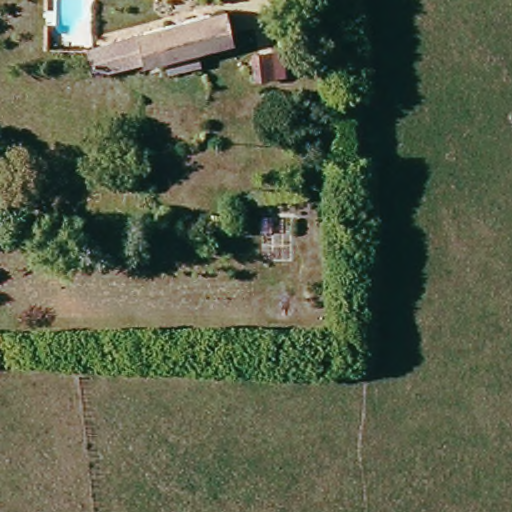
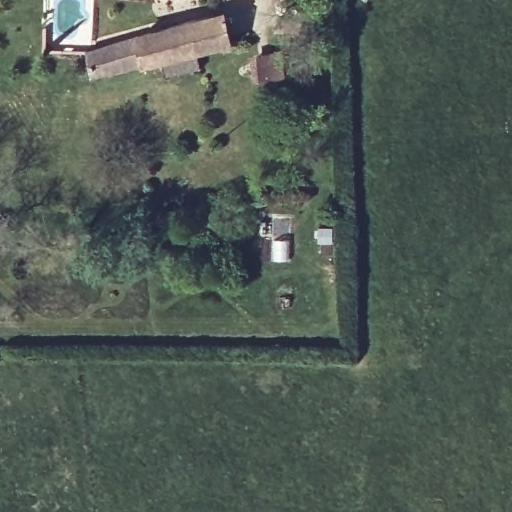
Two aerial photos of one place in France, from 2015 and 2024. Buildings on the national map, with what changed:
unchanged [(230,45),(208,52),(98,82),(91,46),(223,11),(230,45)]

